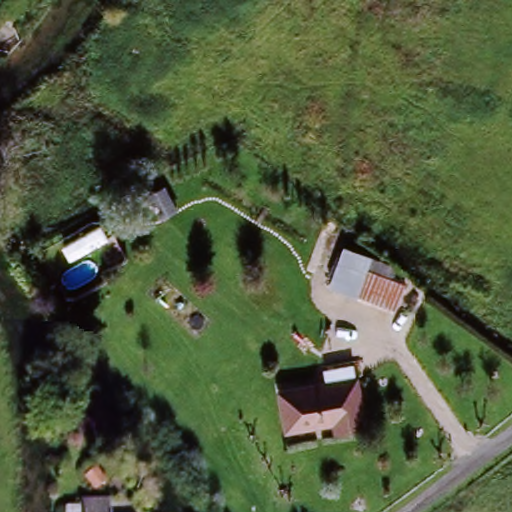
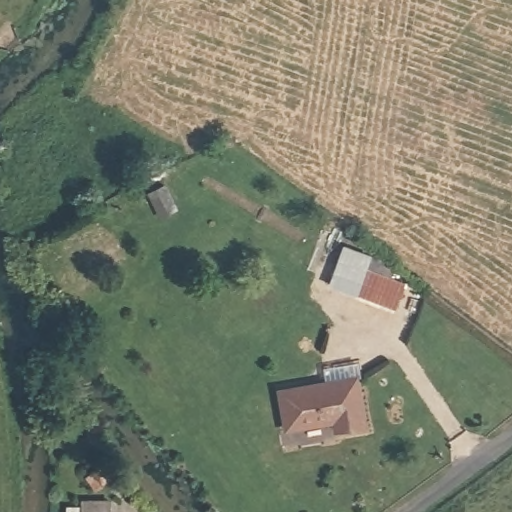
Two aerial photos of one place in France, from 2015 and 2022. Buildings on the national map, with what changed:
unchanged [(159,213),(143,190),(159,179),(176,203),(159,213)]
unchanged [(393,278),(407,285),(396,310),(326,283),(344,235),(353,238),(350,250),(396,268),(393,278)]
unchanged [(285,433),(280,392),(356,380),(365,431),(338,435),(336,426),(285,433)]
unchanged [(121,483),(111,490),(97,470),(106,463),(121,483)]
unchanged [(86,505),(112,504),(112,512),(86,512),(86,505)]

